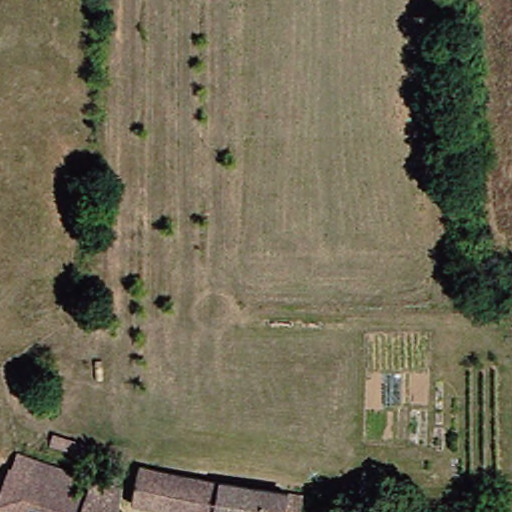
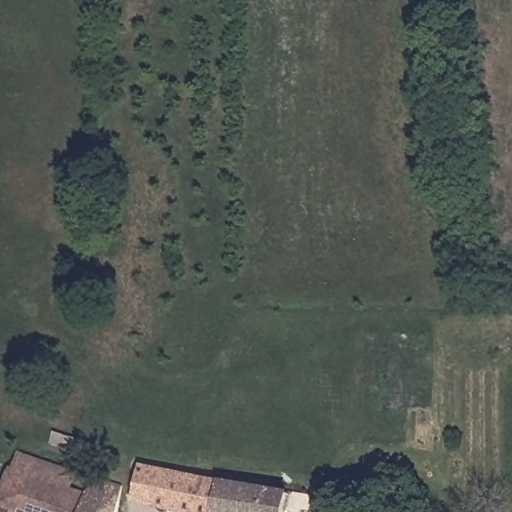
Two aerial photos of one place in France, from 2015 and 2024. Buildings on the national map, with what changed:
unchanged [(111,481),(118,472),(135,477),(131,485),(136,487),(128,512),(20,512),(20,510),(7,504),(26,451),(91,476),(111,481)]
unchanged [(161,470),(316,496),(314,512),(183,512),(152,507),(161,470)]

